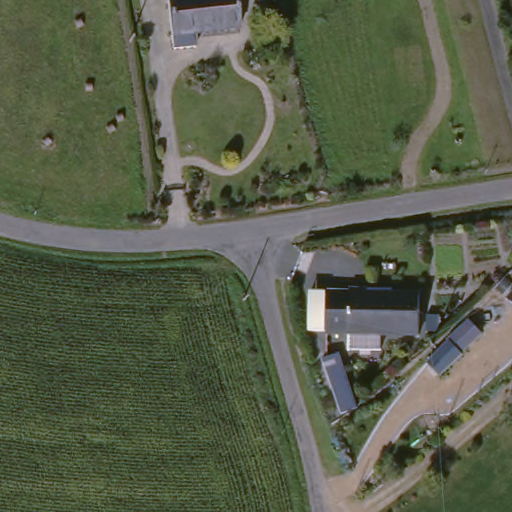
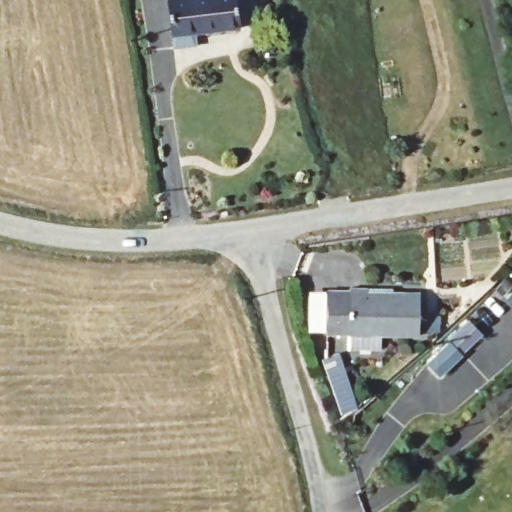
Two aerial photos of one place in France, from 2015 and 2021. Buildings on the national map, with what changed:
unchanged [(179,41),(178,29),(174,0),(242,0),(245,23),(209,27),(209,25),(201,26),(203,39),(179,41)]
unchanged [(399,293),(426,293),(425,335),(387,334),(387,349),(356,349),(357,333),(332,333),(333,290),(357,291),(357,287),(399,288),(399,293)]
unchanged [(440,376),(428,363),(450,341),(449,340),(469,321),(481,334),(462,353),(463,354),(440,376)]
unchanged [(348,408),(335,369),(330,354),(346,349),(350,364),(363,403),(348,408)]

